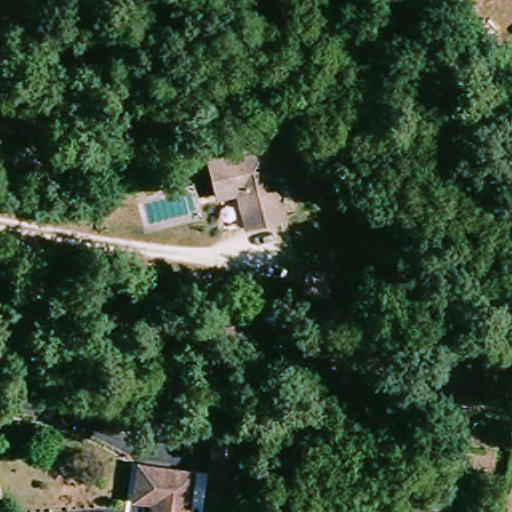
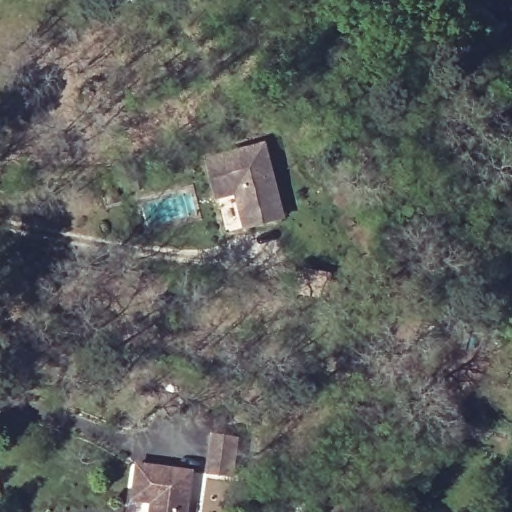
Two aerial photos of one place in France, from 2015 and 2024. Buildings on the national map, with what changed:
unchanged [(288,217),(247,228),(237,192),(218,196),(207,158),(269,140),(288,217)]
unchanged [(236,442),(233,478),(209,476),(212,439),(236,442)]
unchanged [(152,504),(132,504),(134,467),(189,470),(187,512),(152,512),(152,504)]

